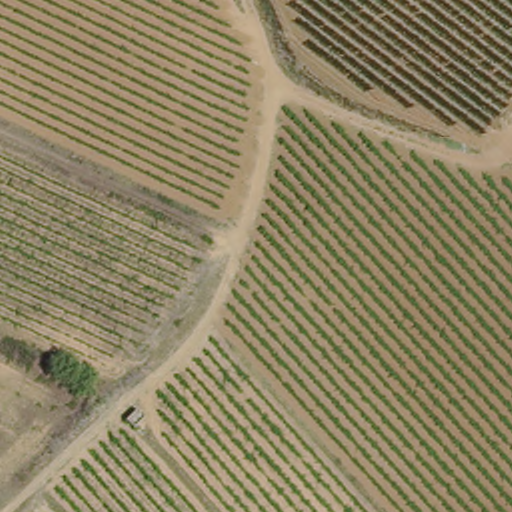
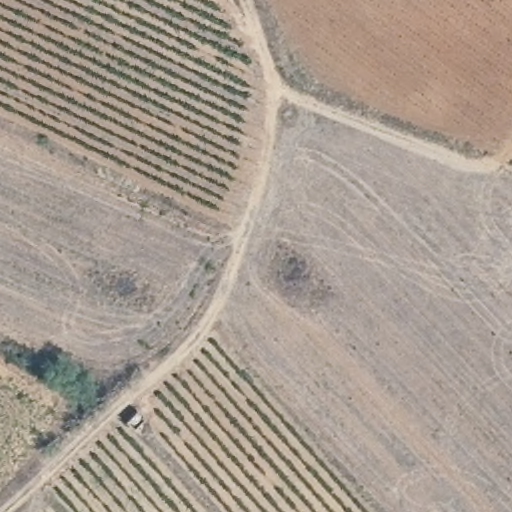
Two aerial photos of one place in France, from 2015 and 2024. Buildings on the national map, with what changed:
unchanged [(134,432),(125,420),(139,407),(148,420),(134,432)]

